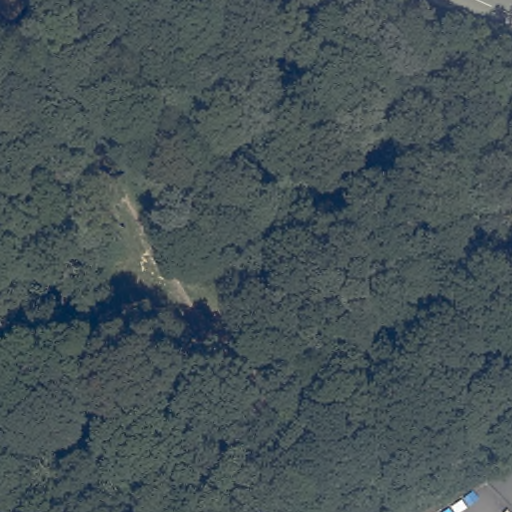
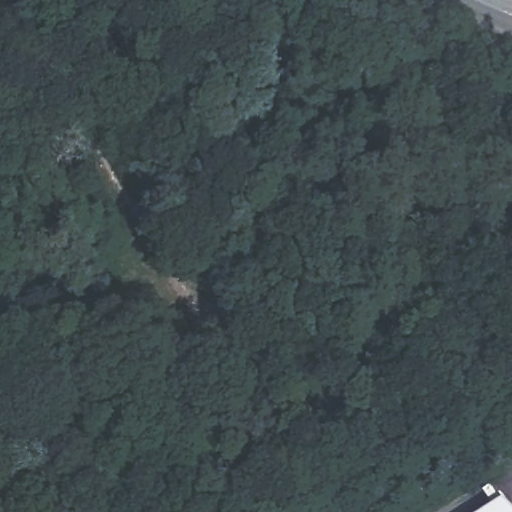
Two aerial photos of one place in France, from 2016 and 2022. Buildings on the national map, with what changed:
unchanged [(512,508),(512,512),(481,512),(502,498),(512,508)]

